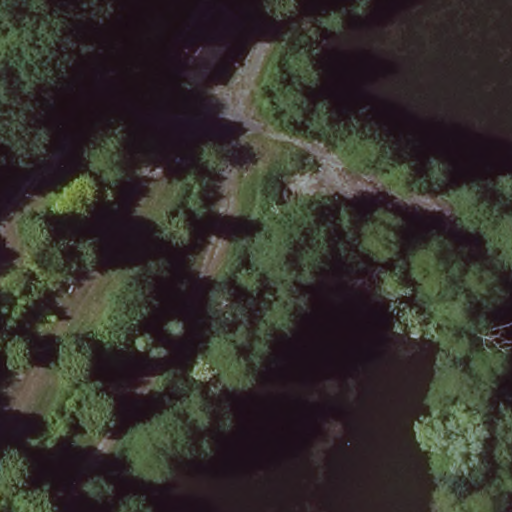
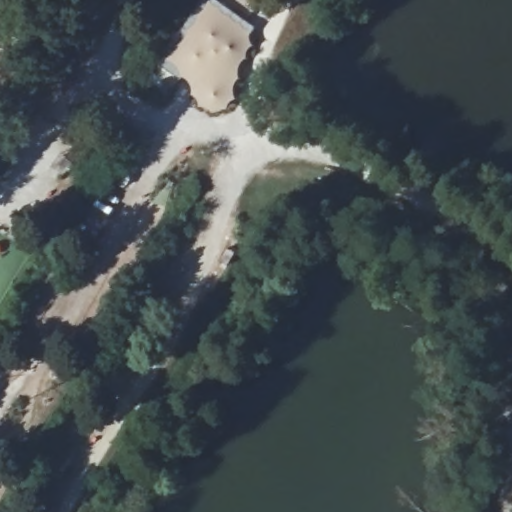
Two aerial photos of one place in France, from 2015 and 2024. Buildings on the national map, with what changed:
unchanged [(160,56),(209,0),(239,0),(256,15),(245,26),(193,85),(160,56)]

